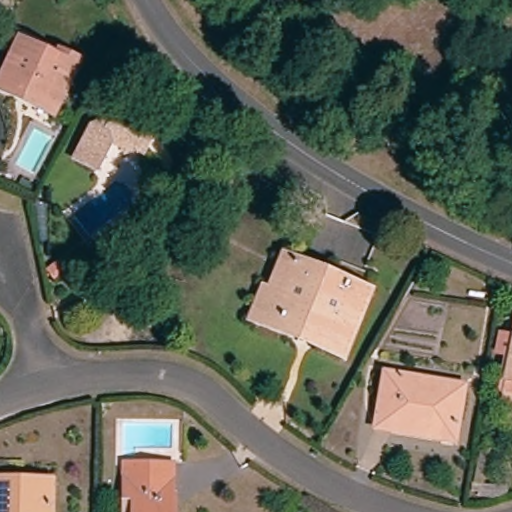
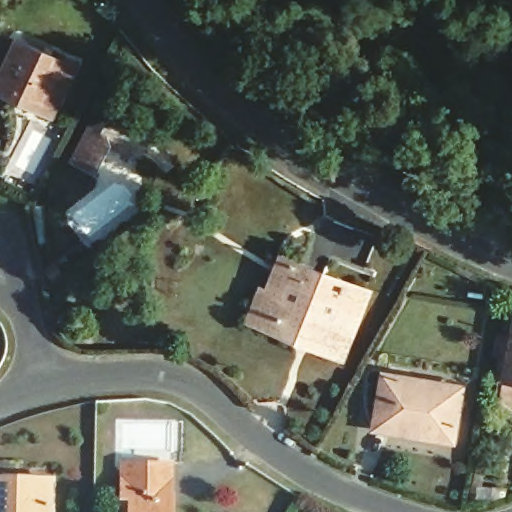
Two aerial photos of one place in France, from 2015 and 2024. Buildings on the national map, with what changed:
unchanged [(15,100),(0,92),(0,87),(21,46),(55,64),(58,58),(77,68),(72,78),(54,113),(51,119),(15,100)]
unchanged [(144,141),(136,157),(129,154),(115,158),(111,145),(100,148),(102,154),(90,177),(68,165),(86,130),(95,128),(101,126),(103,132),(120,127),(144,141)]
unchanged [(284,300),(278,298),(266,330),(247,323),(260,291),(266,293),(280,258),(298,265),(284,300)]
unchanged [(334,358),(266,330),(278,298),(284,300),(298,265),(368,292),(352,333),(342,361),(334,358)]
unchanged [(512,345),(512,404),(501,402),(512,345)]
unchanged [(452,445),(374,432),(383,374),(460,389),(452,445)]
unchanged [(127,472),(176,473),(176,512),(127,512),(127,506),(127,472)]
unchanged [(0,512),(0,482),(50,482),(50,512),(0,512)]

